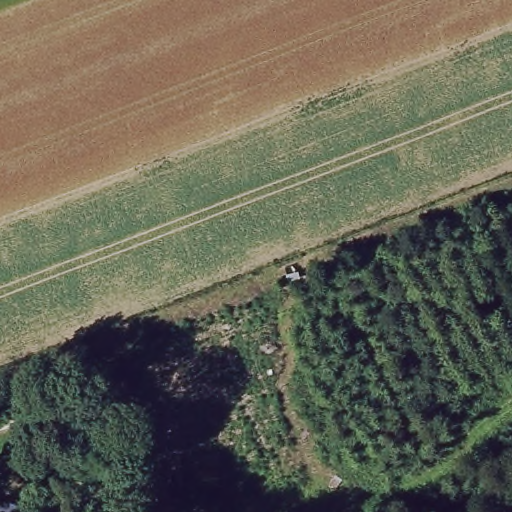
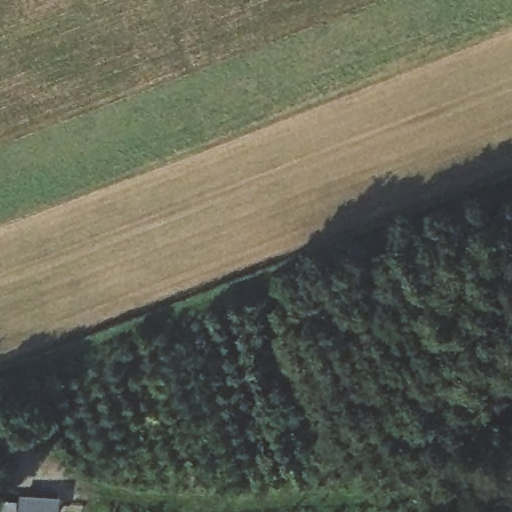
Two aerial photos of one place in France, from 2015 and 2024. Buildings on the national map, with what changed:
unchanged [(16,410),(20,421),(0,427),(0,414),(16,410)]
new [(10,512),(0,511),(0,498),(20,500),(20,493),(61,496),(59,512),(10,512)]

